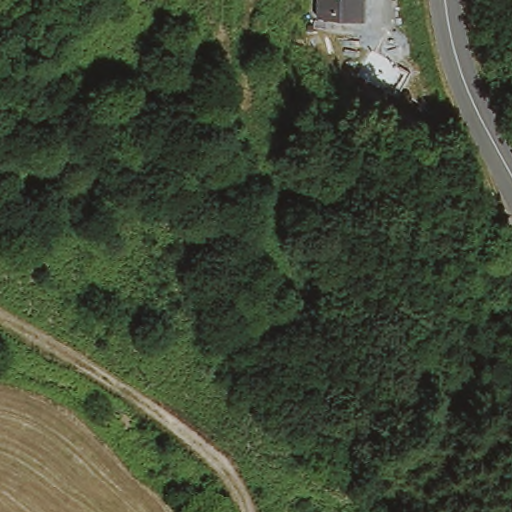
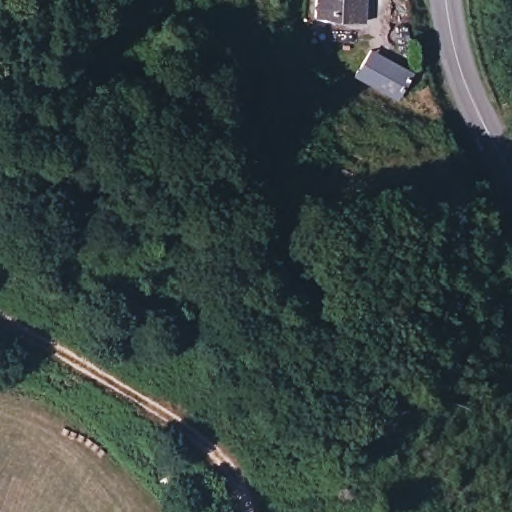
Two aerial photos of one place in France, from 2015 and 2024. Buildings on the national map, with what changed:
unchanged [(364,23),(317,22),(317,0),(365,0),(364,23)]
new [(413,71),(399,101),(355,79),(370,50),(413,71)]

